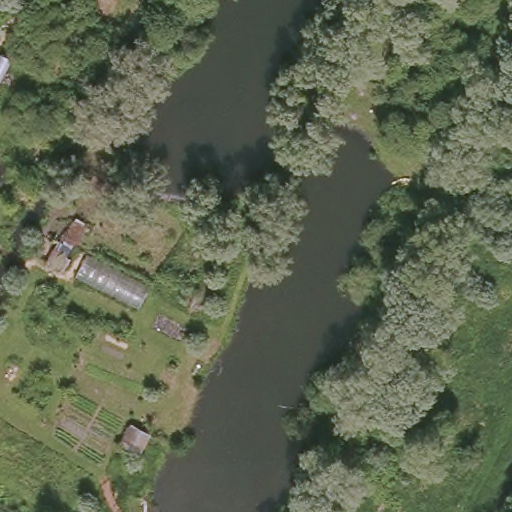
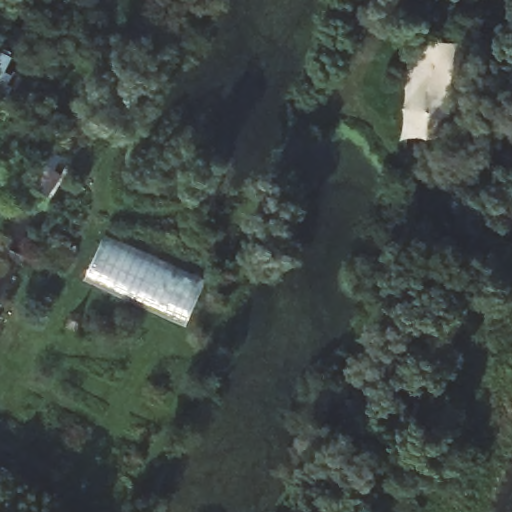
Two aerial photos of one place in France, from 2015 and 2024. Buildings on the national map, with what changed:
new [(186,327),(82,280),(102,235),(206,282),(186,327)]

